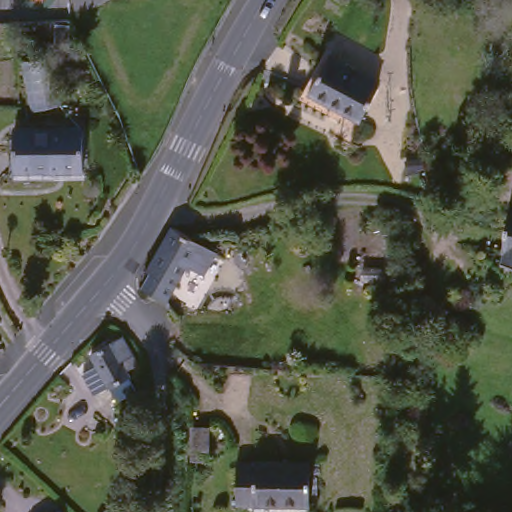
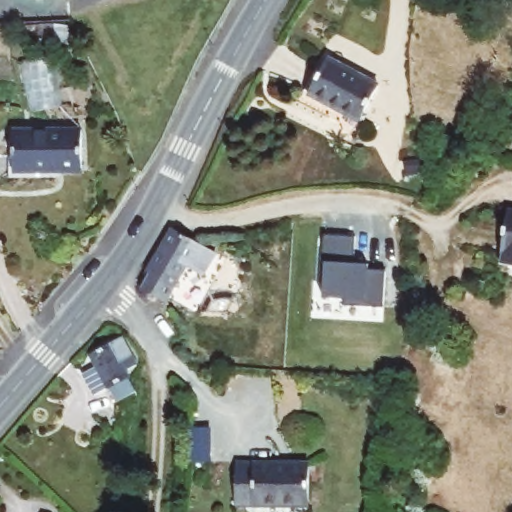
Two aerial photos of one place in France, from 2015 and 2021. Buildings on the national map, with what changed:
unchanged [(376,88),(354,126),(306,100),(326,60),(376,88)]
unchanged [(9,181),(8,135),(75,136),(76,183),(9,181)]
unchanged [(504,213),(512,215),(512,276),(495,274),(504,213)]
unchanged [(217,259),(204,282),(187,273),(171,301),(166,308),(142,295),(149,282),(144,280),(171,234),(199,250),(217,259)]
new [(320,235),(352,236),(351,262),(366,263),(365,268),(384,268),(382,306),(343,305),(343,298),(321,298),(322,282),(319,282),(320,235)]
unchanged [(129,377),(108,389),(100,376),(94,380),(86,369),(95,364),(88,354),(116,339),(134,362),(124,368),(129,377)]
unchanged [(191,462),(192,429),(209,430),(208,463),(191,462)]
unchanged [(231,471),(307,470),(308,512),(230,512),(231,471)]

